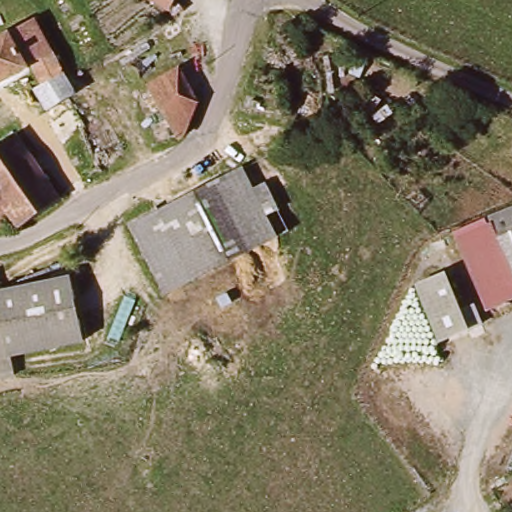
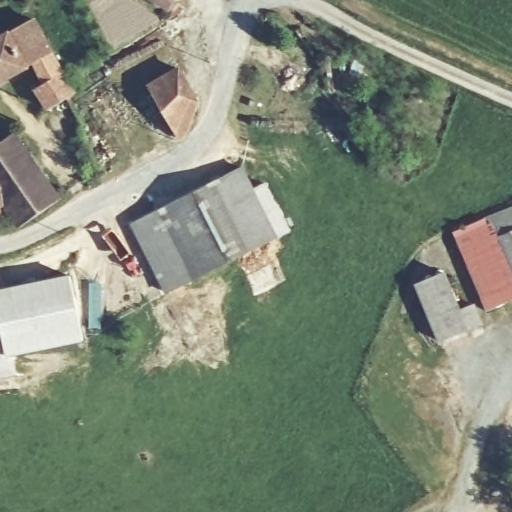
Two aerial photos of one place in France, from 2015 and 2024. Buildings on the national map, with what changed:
unchanged [(157,0),(169,0),(166,5),(157,0)]
unchanged [(58,99),(44,107),(34,91),(40,87),(28,70),(0,87),(0,38),(29,20),(59,76),(74,69),(83,84),(58,99)]
unchanged [(181,137),(149,90),(181,74),(195,99),(181,137)]
unchanged [(13,210),(0,217),(0,141),(13,133),(61,197),(23,220),(13,210)]
unchanged [(243,166),(253,186),(264,181),(277,206),(266,211),(279,237),(167,291),(131,220),(243,166)]
unchanged [(484,217),(512,207),(512,306),(484,316),(451,231),(464,226),(484,217)]
unchanged [(439,339),(418,283),(447,271),(469,328),(439,339)]
unchanged [(85,340),(10,354),(14,372),(0,375),(0,287),(72,274),(85,340)]

